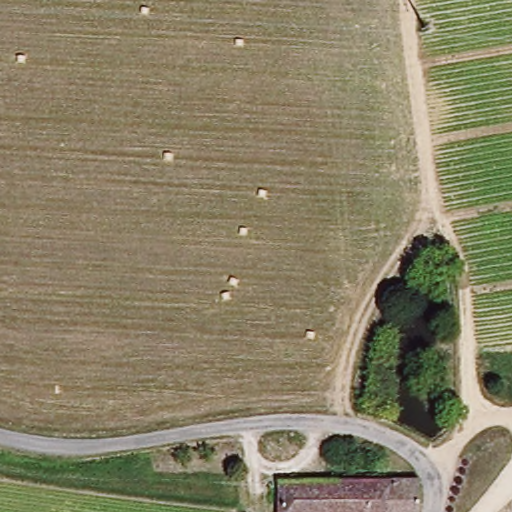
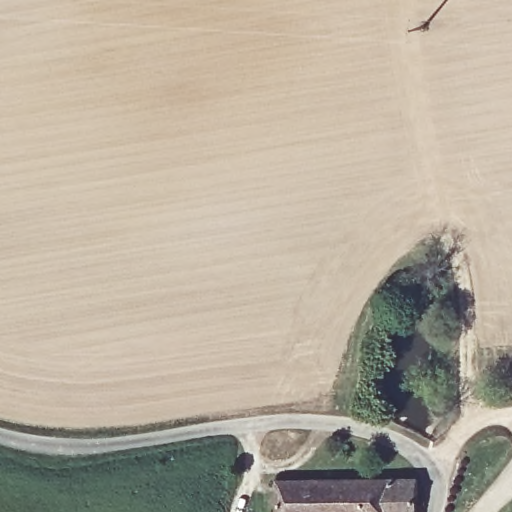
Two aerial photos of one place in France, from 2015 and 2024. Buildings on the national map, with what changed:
unchanged [(375,502),(374,512),(286,512),(286,481),(355,482),(354,502),(375,502)]
unchanged [(374,512),(375,502),(354,502),(355,482),(423,483),(425,484),(424,512),(374,512)]

